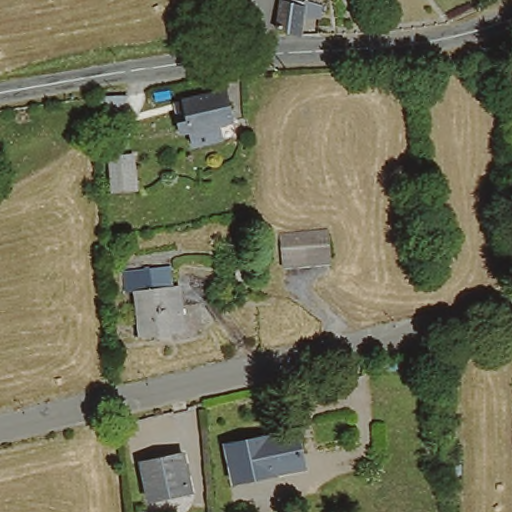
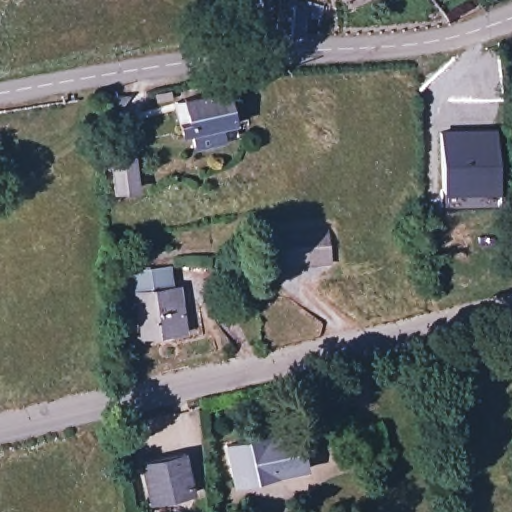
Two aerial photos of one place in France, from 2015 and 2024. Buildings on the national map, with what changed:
unchanged [(270,0),(291,0),(296,1),(296,0),(308,0),(314,2),(312,11),(295,9),(291,29),(266,24),(270,0)]
unchanged [(189,141),(187,126),(178,127),(176,117),(184,116),(180,95),(223,85),(230,117),(233,132),(189,141)]
new [(496,125),(500,202),(443,206),(440,130),(496,125)]
unchanged [(127,190),(108,192),(106,159),(124,157),(127,190)]
unchanged [(328,260),(282,262),(279,229),(326,227),(328,260)]
unchanged [(174,288),(182,288),(185,333),(142,337),(138,291),(129,291),(128,268),(172,267),(174,288)]
unchanged [(223,441),(269,434),(270,439),(297,435),(304,471),(273,476),(275,481),(232,487),(223,441)]
unchanged [(187,482),(161,487),(162,494),(149,496),(142,462),(182,454),(187,482)]

